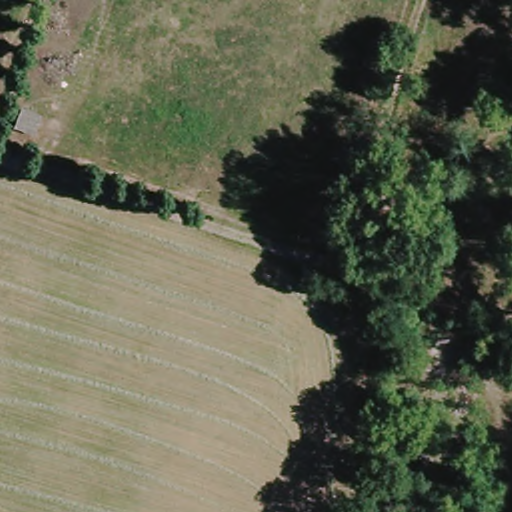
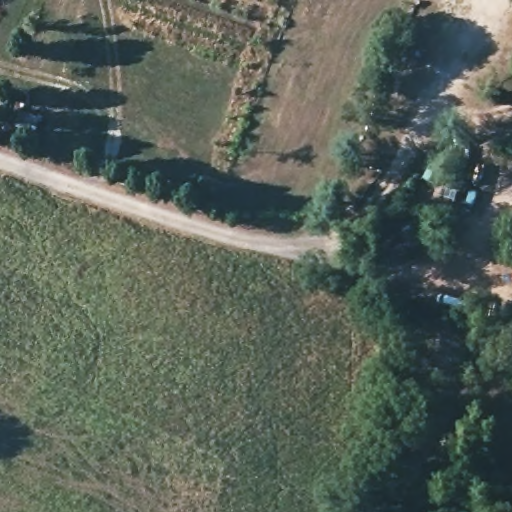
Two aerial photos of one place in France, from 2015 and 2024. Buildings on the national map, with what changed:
unchanged [(465,221),(454,254),(436,250),(444,216),(465,221)]

